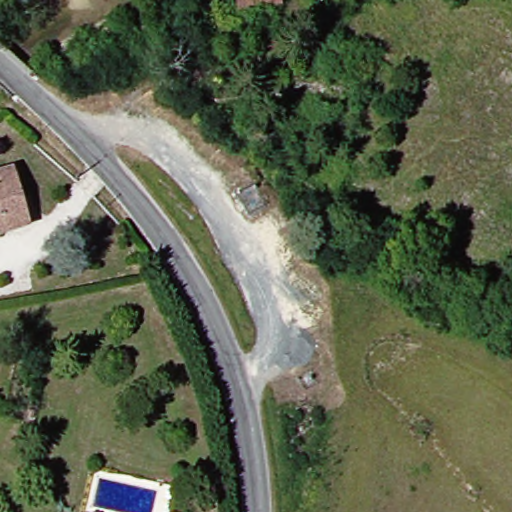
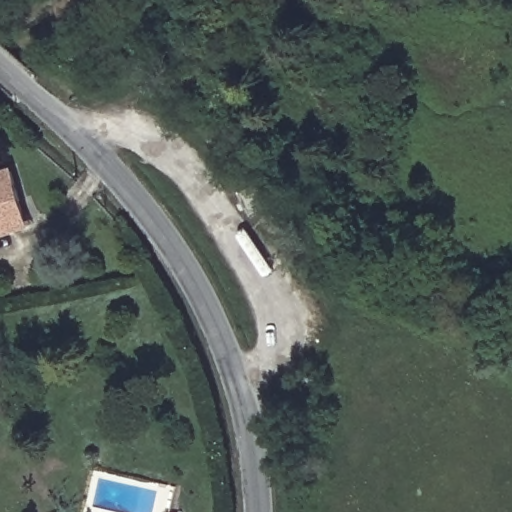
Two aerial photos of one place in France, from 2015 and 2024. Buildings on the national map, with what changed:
unchanged [(290,4),(249,9),(248,0),(289,0),(290,4)]
unchanged [(5,154),(0,159),(0,158),(0,146),(5,154)]
unchanged [(24,165),(42,226),(1,240),(0,236),(0,174),(24,165)]
unchanged [(168,512),(163,512),(163,511),(168,512)]

